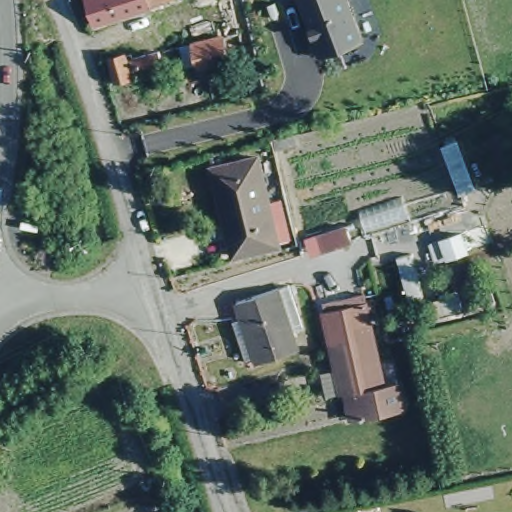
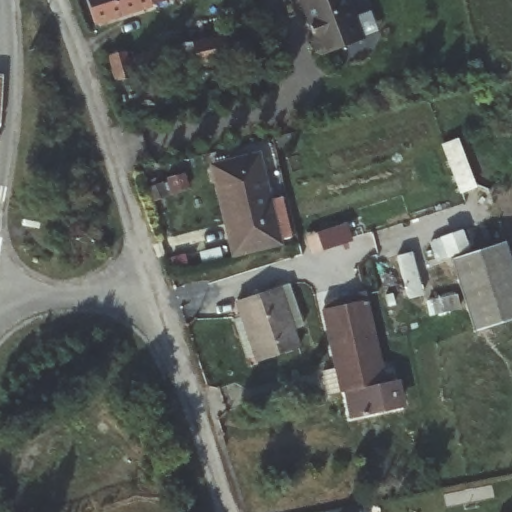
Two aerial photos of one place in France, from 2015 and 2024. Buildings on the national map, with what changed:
unchanged [(83,0),(173,0),(91,25),(83,0)]
unchanged [(322,57),(315,55),(312,44),(314,39),(299,0),(347,0),(362,42),(322,57)]
unchanged [(210,41),(203,7),(218,4),(226,37),(210,41)]
unchanged [(180,69),(170,71),(167,62),(165,52),(210,41),(214,54),(216,66),(182,75),(180,69)]
unchanged [(127,52),(129,59),(159,51),(162,65),(135,70),(132,71),(134,80),(115,84),(109,57),(127,52)]
unchanged [(295,136),(297,147),(278,152),(276,141),(295,136)]
unchanged [(454,142),(472,188),(457,193),(440,147),(454,142)]
unchanged [(277,244),(235,252),(216,166),(259,155),(277,244)]
new [(305,242),(316,239),(345,229),(350,244),(321,254),(310,257),(305,242)]
new [(462,293),(450,261),(504,242),(512,268),(512,319),(474,330),(465,306),(435,312),(433,300),(462,293)]
unchanged [(258,360),(240,300),(282,290),(300,348),(258,360)]
demolished [(435,312),(433,300),(462,293),(465,306),(435,312)]
unchanged [(336,365),(323,312),(326,312),(325,306),(339,302),(340,308),(365,301),(378,355),(336,365)]
unchanged [(347,420),(344,408),(342,397),(332,397),(326,373),(337,371),(336,365),(378,355),(385,385),(392,383),(395,396),(397,410),(347,420)]

